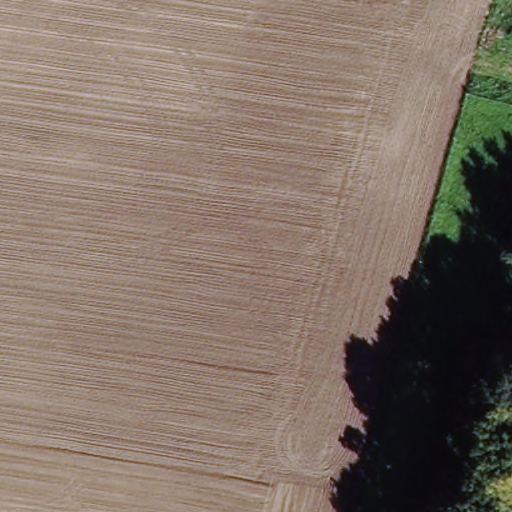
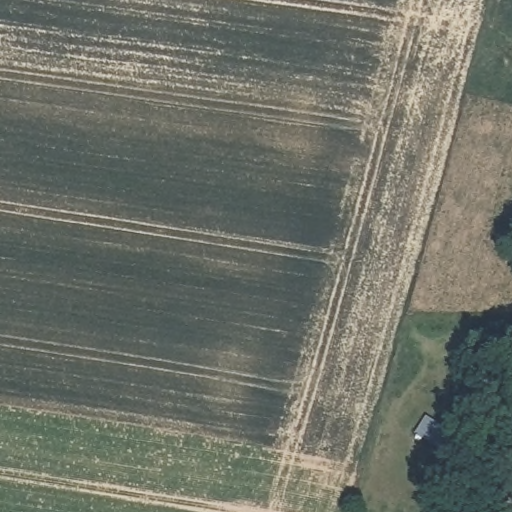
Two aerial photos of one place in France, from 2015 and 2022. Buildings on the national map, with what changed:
[]

